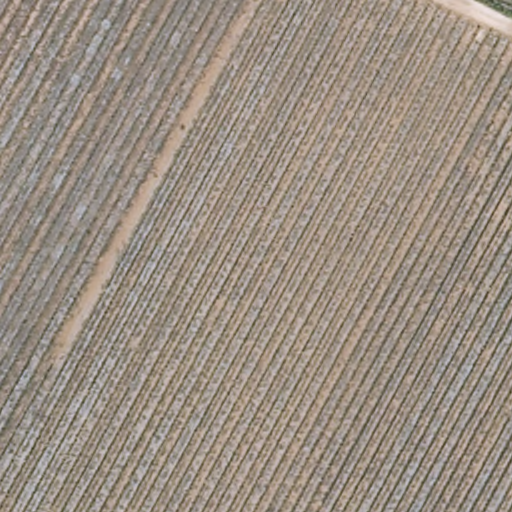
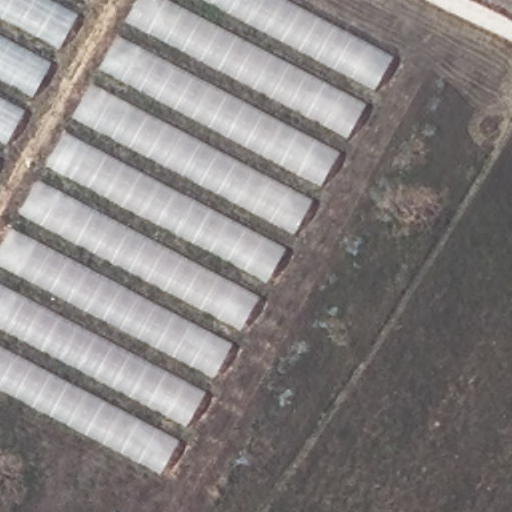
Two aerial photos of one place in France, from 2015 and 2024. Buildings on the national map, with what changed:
new [(0,156),(0,0),(90,0),(0,156)]
new [(0,253),(138,0),(296,0),(403,54),(164,475),(0,394),(0,253)]

